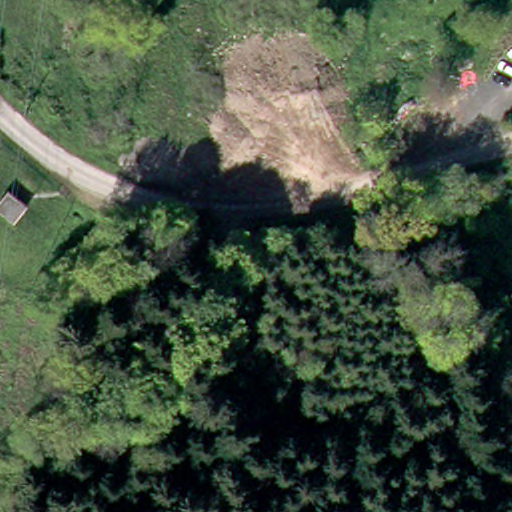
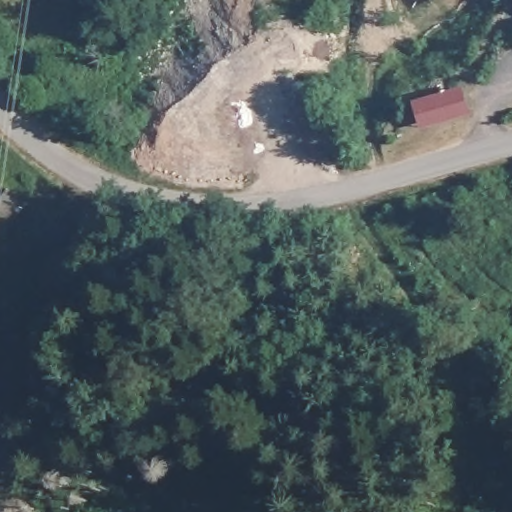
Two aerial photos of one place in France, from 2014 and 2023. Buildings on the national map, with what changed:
new [(470,115),(420,126),(415,102),(462,90),(470,115)]
unchanged [(10,230),(0,217),(0,201),(13,187),(32,210),(10,230)]

